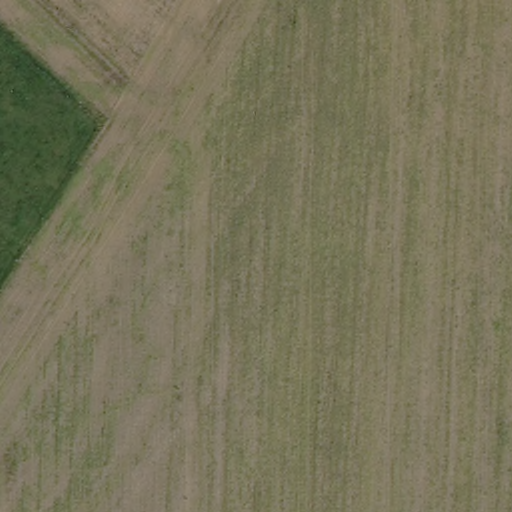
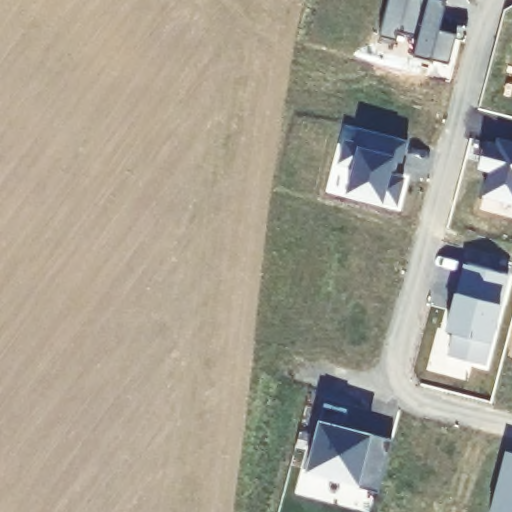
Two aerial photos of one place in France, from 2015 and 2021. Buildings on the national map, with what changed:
new [(444,0),(446,1),(439,31),(457,35),(449,66),(413,57),(418,37),(399,33),(397,42),(379,37),(388,0),(444,0)]
new [(340,140),(351,142),(355,128),(401,140),(396,162),(388,160),(385,174),(399,177),(392,204),(342,190),(349,167),(334,162),(340,140)]
new [(478,167),(485,142),(497,146),(499,141),(512,144),(512,204),(484,196),(491,170),(478,167)]
new [(453,311),(457,312),(469,266),(508,276),(485,367),(449,357),(455,333),(447,332),(453,311)]
new [(325,406),(347,411),(343,428),(393,441),(379,494),(356,488),(357,484),(308,471),(325,406)]
new [(506,452),(512,454),(512,512),(491,512),(506,452)]

